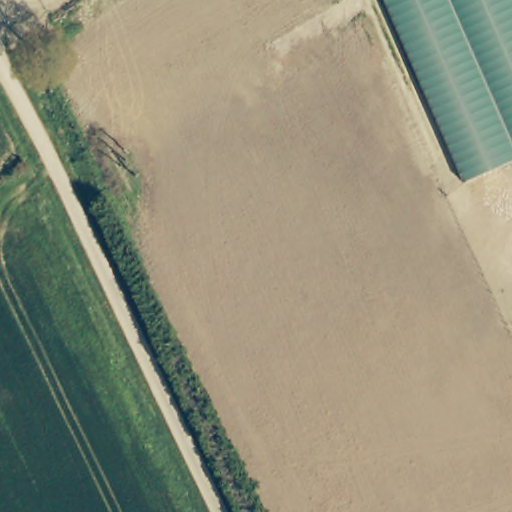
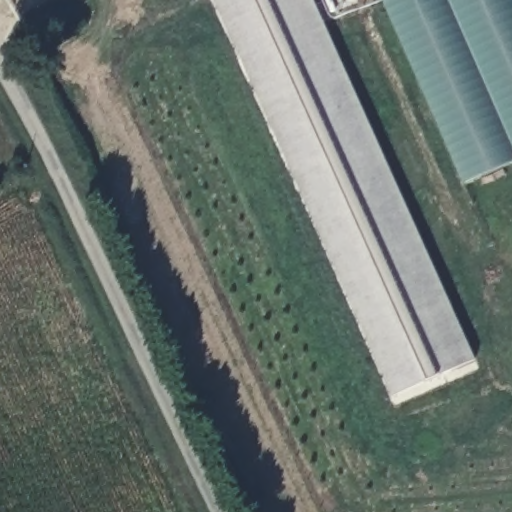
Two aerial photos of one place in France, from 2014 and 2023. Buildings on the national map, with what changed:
new [(476,357),(394,395),(214,0),(316,0),(476,357)]
unchanged [(512,167),(465,188),(383,0),(512,0),(512,167)]

